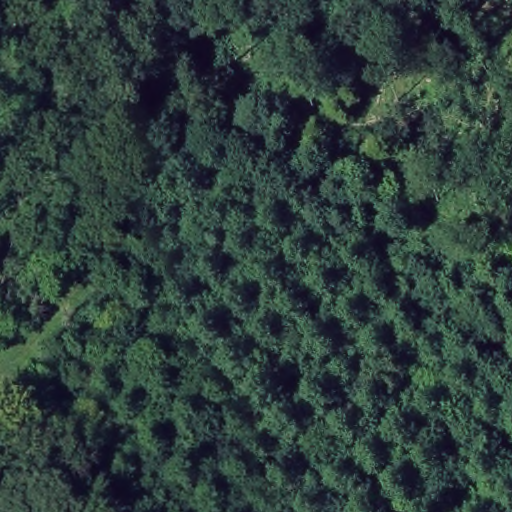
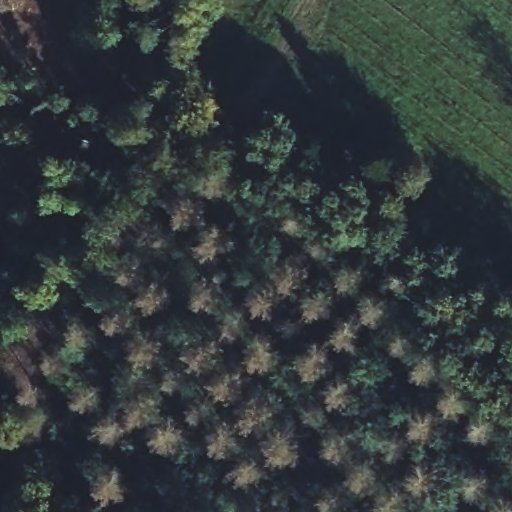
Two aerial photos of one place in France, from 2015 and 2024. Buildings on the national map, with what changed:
unchanged [(301,181),(275,210),(253,185),(284,154),(301,181)]

